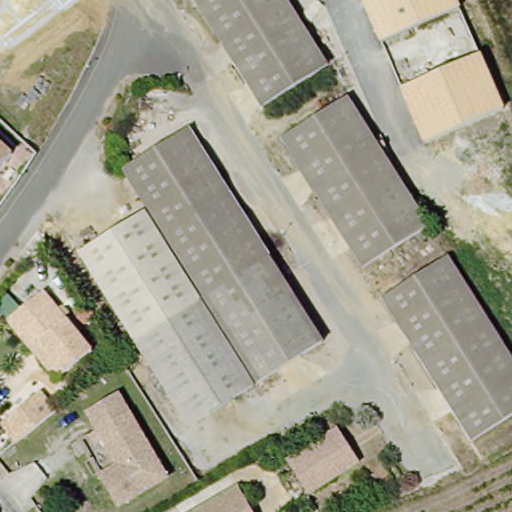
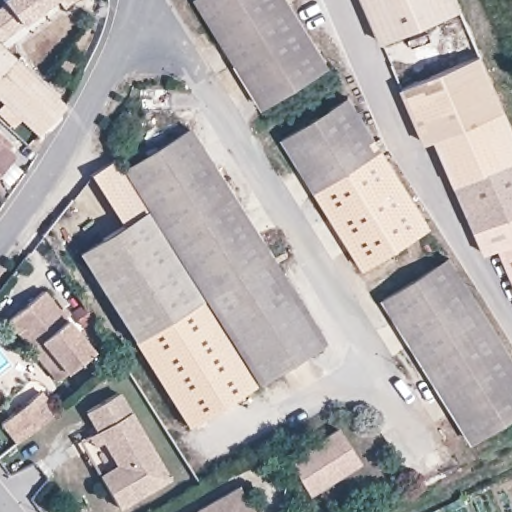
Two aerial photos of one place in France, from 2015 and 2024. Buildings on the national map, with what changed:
unchanged [(3,0),(46,0),(0,36),(0,4),(4,1),(3,0)]
unchanged [(57,0),(66,0),(61,4),(57,0)]
unchanged [(251,52),(231,65),(191,0),(283,0),(297,22),(251,52)]
unchanged [(456,0),(459,7),(382,41),(363,0),(456,0)]
unchanged [(251,52),(297,22),(326,67),(274,100),(259,109),(231,65),(251,52)]
new [(65,105),(40,134),(0,99),(0,46),(15,58),(65,105)]
unchanged [(401,88),(480,54),(505,107),(436,136),(425,141),(401,88)]
unchanged [(285,141),(291,137),(350,99),(383,151),(316,191),(285,141)]
new [(512,124),(512,275),(499,245),(485,251),(436,136),(505,107),(512,124)]
unchanged [(189,126),(269,255),(203,296),(123,166),(189,126)]
unchanged [(0,165),(0,142),(12,152),(0,165)]
unchanged [(383,151),(431,230),(365,271),(317,192),(383,151)]
new [(122,224),(91,175),(117,158),(123,166),(149,208),(145,209),(122,224)]
unchanged [(78,250),(145,209),(200,298),(134,340),(78,250)]
unchanged [(322,341),(256,382),(203,296),(269,255),(322,341)]
unchanged [(389,297),(455,256),(496,321),(430,363),(389,297)]
unchanged [(29,353),(5,324),(41,294),(90,355),(64,377),(54,384),(29,353)]
unchanged [(200,298),(253,384),(187,426),(134,340),(200,298)]
unchanged [(477,441),(430,363),(496,321),(512,347),(512,419),(477,441)]
unchanged [(123,387),(176,472),(128,502),(108,472),(126,460),(111,437),(103,442),(97,431),(105,427),(93,407),(123,387)]
unchanged [(19,446),(3,427),(42,396),(58,414),(19,446)]
unchanged [(288,463),(340,433),(360,466),(309,497),(288,463)]
unchanged [(243,486),(258,512),(196,512),(243,486)]

